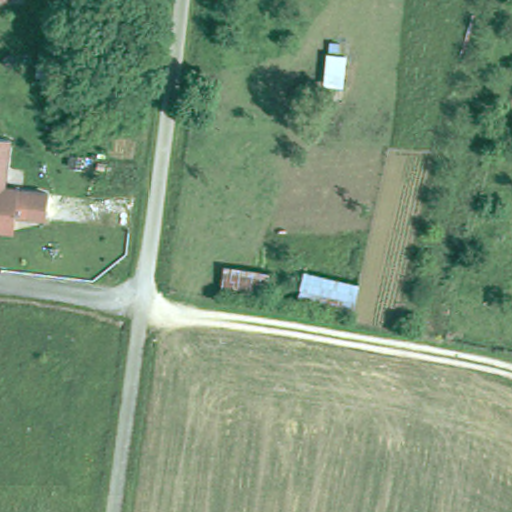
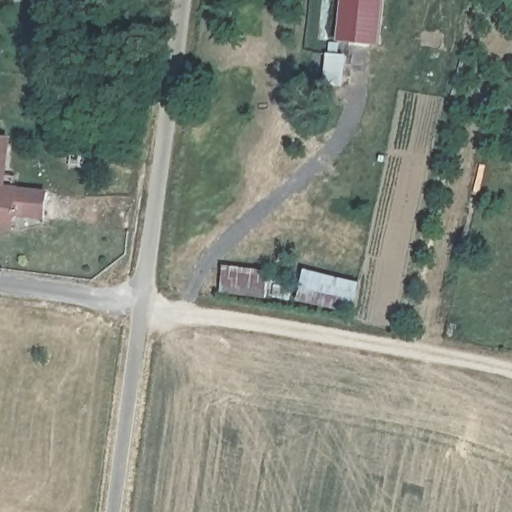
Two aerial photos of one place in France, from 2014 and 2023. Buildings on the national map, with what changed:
new [(348,0),(388,0),(384,46),(344,42),(348,0)]
unchanged [(342,85),(325,85),(328,54),(330,42),(337,43),(337,55),(345,56),(342,85)]
unchanged [(0,136),(14,138),(8,188),(52,192),(50,218),(20,214),(20,216),(18,229),(0,227),(0,136)]
unchanged [(270,273),(267,298),(220,292),(224,267),(270,273)]
unchanged [(315,275),(369,288),(362,316),(310,303),(315,275)]

